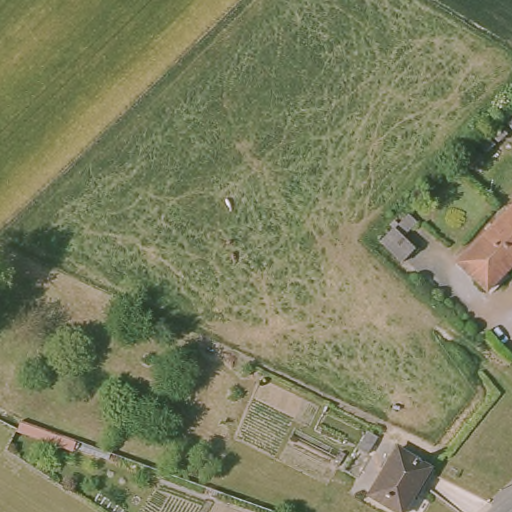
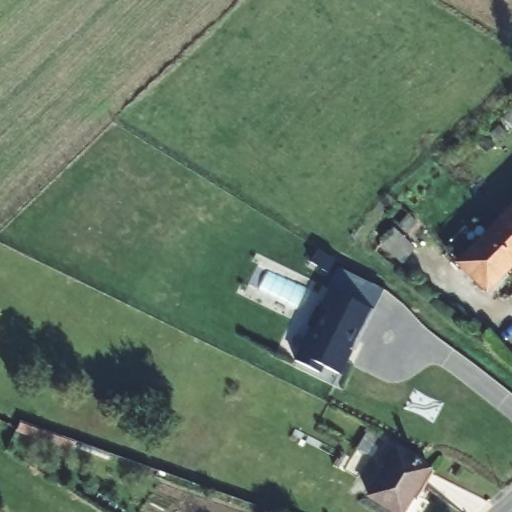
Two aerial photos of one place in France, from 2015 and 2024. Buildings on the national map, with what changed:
unchanged [(512,229),(503,220),(501,219),(512,208),(512,229)]
unchanged [(512,229),(512,265),(487,289),(460,262),(501,219),(503,220),(512,229)]
new [(375,309),(360,340),(358,340),(353,349),(352,349),(340,373),(323,365),(320,372),(296,360),(313,327),(311,322),(319,306),(322,308),(331,288),(375,309)]
unchanged [(404,512),(396,512),(370,495),(400,451),(430,468),(404,512)]

